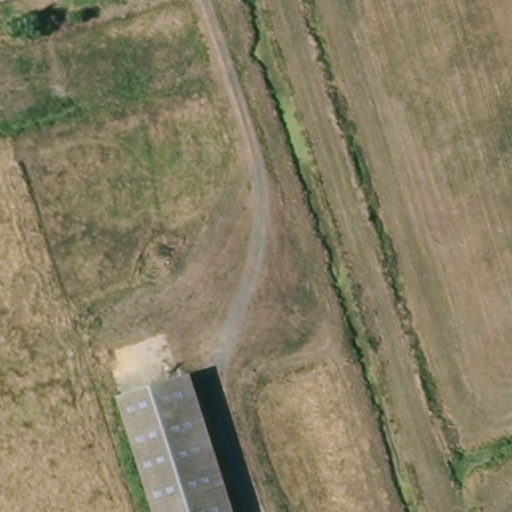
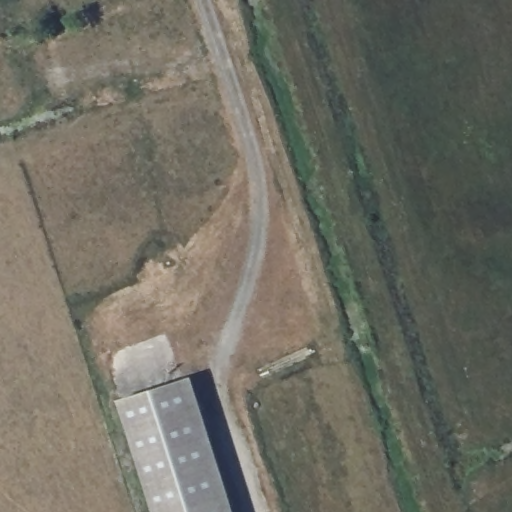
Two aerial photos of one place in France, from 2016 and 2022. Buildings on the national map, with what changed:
unchanged [(151,512),(115,400),(190,378),(233,512),(151,512)]

